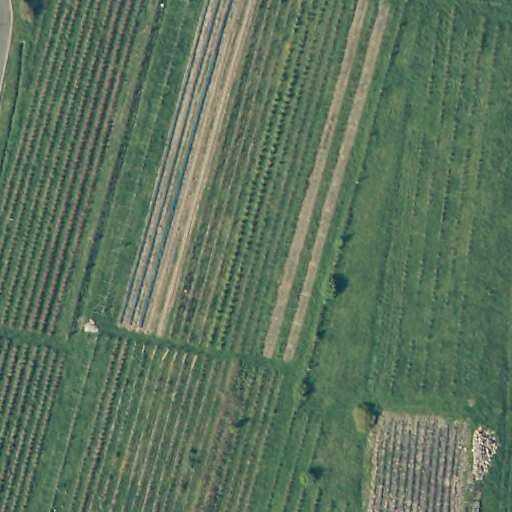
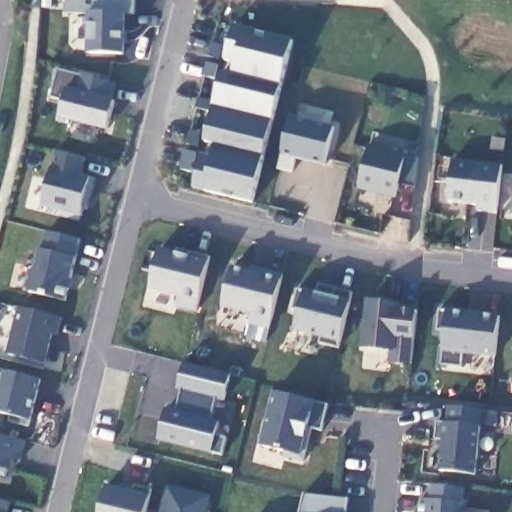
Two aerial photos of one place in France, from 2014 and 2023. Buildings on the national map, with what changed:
new [(136,13),(126,12),(125,53),(88,52),(89,13),(66,13),(66,0),(136,0),(136,13)]
new [(254,201),(195,187),(234,23),(294,39),(254,201)]
new [(115,98),(107,129),(59,118),(64,100),(51,97),(59,69),(116,83),(115,98)]
new [(326,166),(297,159),(293,172),(276,168),(289,113),(335,124),(326,166)]
new [(406,153),(420,157),(416,187),(399,181),(395,198),(360,189),(370,144),(406,153)]
new [(41,207),(56,150),(86,157),(82,174),(90,176),(81,215),(41,207)]
new [(498,213),(477,211),(478,205),(449,202),(453,159),(503,164),(498,213)]
new [(30,291),(26,287),(29,270),(35,267),(39,248),(41,249),(46,230),(81,239),(66,300),(30,291)]
new [(150,288),(159,247),(177,252),(179,248),(211,256),(199,301),(150,288)]
new [(249,270),(251,264),(284,272),(273,319),(222,306),(232,265),(249,270)]
new [(339,346),(321,342),(322,337),(294,330),(299,308),(294,308),(299,291),(305,293),(305,289),(317,291),(319,284),(353,291),(339,346)]
new [(402,303),(401,307),(417,308),(414,337),(411,364),(389,362),(391,350),(361,347),(367,298),(402,303)]
new [(59,334),(54,333),(46,363),(8,354),(19,307),(62,317),(59,334)]
new [(440,308),(447,309),(501,314),(495,357),(463,353),(462,365),(442,363),(443,351),(446,328),(438,328),(440,308)]
new [(225,399),(216,397),(211,418),(220,420),(217,434),(226,437),(223,453),(213,450),(212,453),(158,440),(167,407),(178,409),(182,389),(177,388),(184,362),(230,374),(225,399)]
new [(0,412),(0,370),(42,380),(31,420),(29,425),(10,421),(11,414),(0,412)]
new [(323,429),(314,427),(305,461),(287,457),(287,451),(260,445),(275,390),(315,401),(329,405),(323,429)]
new [(497,425),(482,423),(476,474),(439,470),(443,439),(435,439),(437,420),(445,421),(448,406),(482,409),(498,410),(497,425)]
new [(13,457),(8,479),(0,477),(0,435),(26,441),(23,459),(13,457)]
new [(135,491),(136,484),(151,488),(150,496),(146,512),(100,512),(108,484),(135,491)]
new [(161,512),(168,484),(211,495),(207,512),(161,512)]
new [(466,512),(418,512),(419,496),(429,498),(431,484),(464,487),(462,511),(466,512)]
new [(300,512),(304,493),(348,498),(348,512),(300,512)]
new [(9,512),(0,512),(0,499),(11,502),(9,512)]

